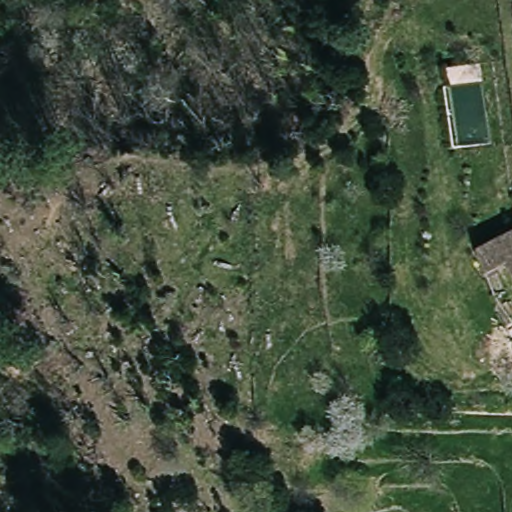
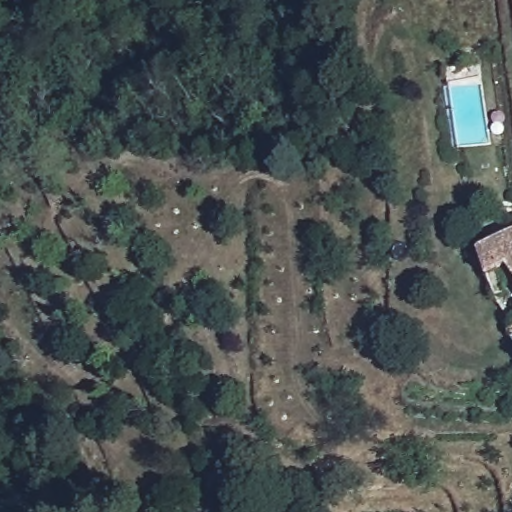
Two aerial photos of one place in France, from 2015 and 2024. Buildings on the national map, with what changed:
unchanged [(502,267),(482,279),(473,250),(512,232),(512,281),(502,267)]
unchanged [(511,330),(512,330),(512,332),(511,330)]

